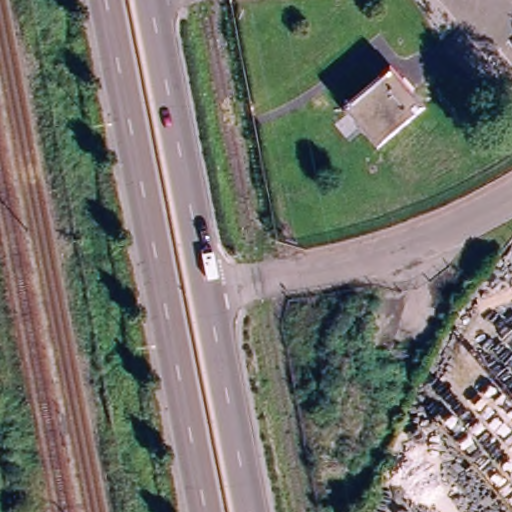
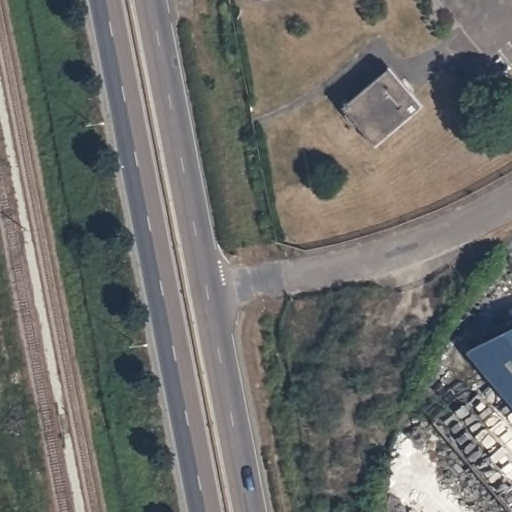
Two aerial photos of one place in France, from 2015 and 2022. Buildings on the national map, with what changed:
unchanged [(422,106),(376,145),(345,107),(390,68),(422,106)]
new [(463,354),(512,331),(512,411),(463,354)]

